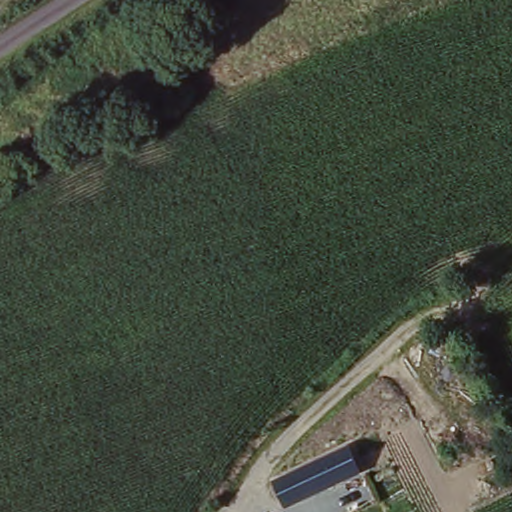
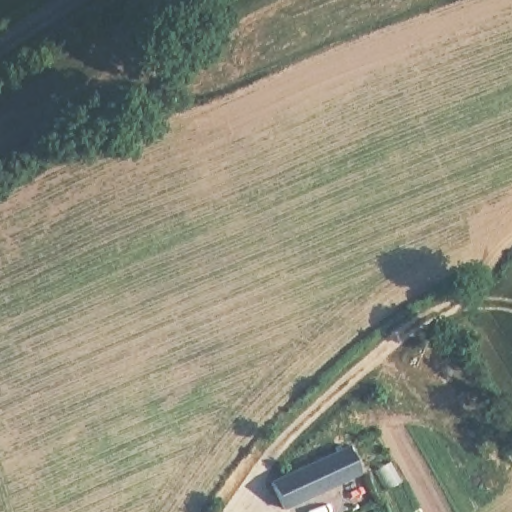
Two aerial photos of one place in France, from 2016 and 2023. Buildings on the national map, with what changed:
unchanged [(309,466),(327,457),(322,446),(347,433),(352,445),(363,470),(288,508),(276,483),(277,481),(291,475),(287,465),(305,456),(309,466)]

